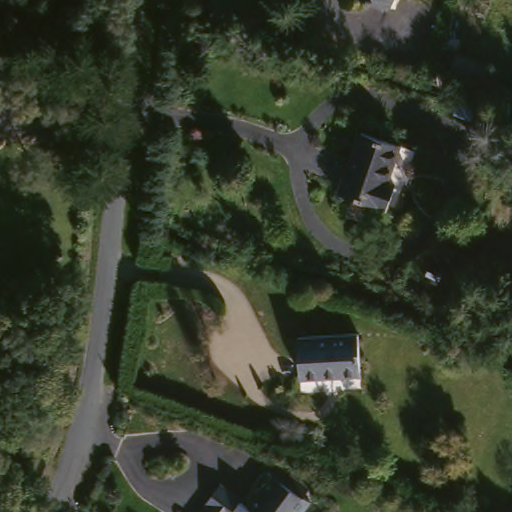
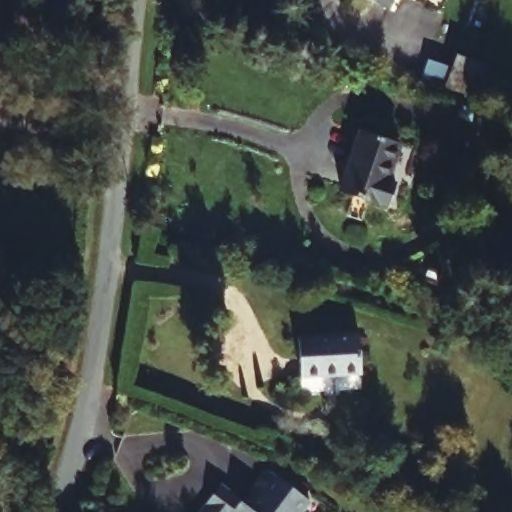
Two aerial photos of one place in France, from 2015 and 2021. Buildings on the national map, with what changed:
unchanged [(384,10),(361,0),(388,0),(384,10)]
unchanged [(486,71),(476,100),(442,88),(454,60),(486,71)]
unchanged [(394,139),(380,176),(391,181),(385,200),(335,185),(357,125),(394,139)]
unchanged [(293,338),(354,332),(358,372),(298,377),(293,338)]
unchanged [(250,488),(261,475),(307,508),(305,512),(205,512),(202,510),(217,490),(235,503),(244,510),(257,494),(250,488)]

